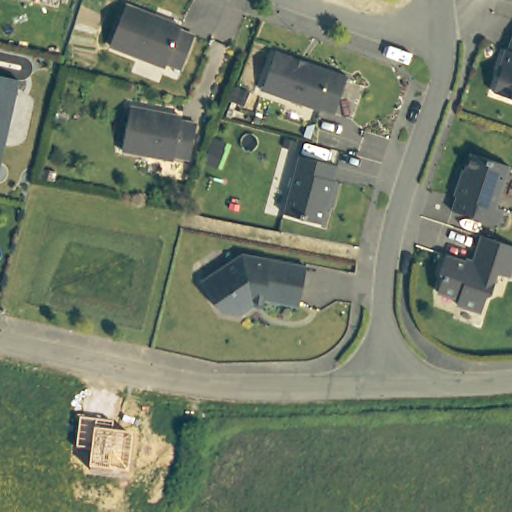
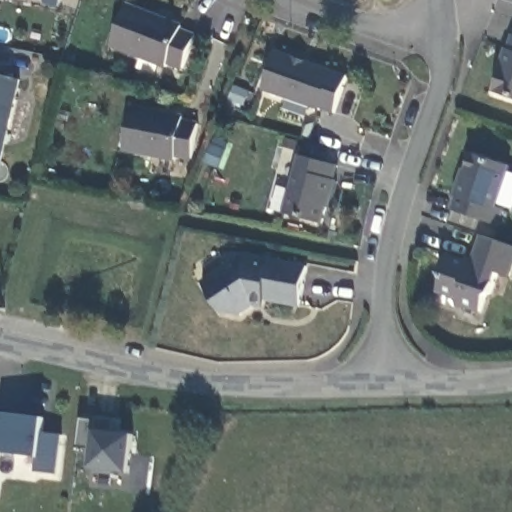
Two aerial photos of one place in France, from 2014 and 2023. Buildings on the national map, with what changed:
unchanged [(124,4),(178,24),(176,30),(190,34),(179,64),(165,59),(163,64),(110,44),(124,4)]
unchanged [(494,63),(500,46),(503,46),(508,33),(512,34),(512,97),(488,89),(497,64),(494,63)]
unchanged [(273,49),(290,55),(289,57),(303,61),(303,59),(345,73),(332,110),(318,105),(317,108),(259,89),(273,49)]
unchanged [(15,88),(0,158),(0,85),(15,88)]
unchanged [(128,104),(176,115),(175,119),(191,122),(185,154),(169,150),(168,156),(119,146),(128,104)]
unchanged [(453,192),(451,191),(455,174),(459,175),(468,149),(507,164),(492,204),(499,205),(494,223),(448,206),(453,192)]
unchanged [(299,154),(337,164),(333,179),(335,179),(330,197),(328,196),(321,223),(283,213),(299,154)]
unchanged [(465,264),(476,235),(480,237),(512,248),(512,257),(504,279),(495,275),(486,298),(483,296),(475,312),(449,301),(451,298),(434,291),(441,275),(433,271),(442,254),(465,264)]
unchanged [(242,251),(303,264),(296,302),(253,294),(253,303),(235,313),(219,308),(200,277),(242,251)]
new [(2,414),(2,412),(44,417),(43,434),(62,434),(57,474),(35,472),(37,457),(0,453),(0,414),(2,414)]
unchanged [(90,469),(91,452),(73,449),(78,419),(112,424),(111,432),(132,434),(127,474),(90,469)]

